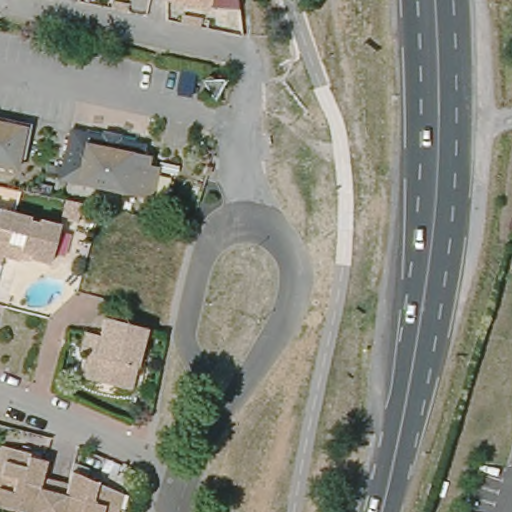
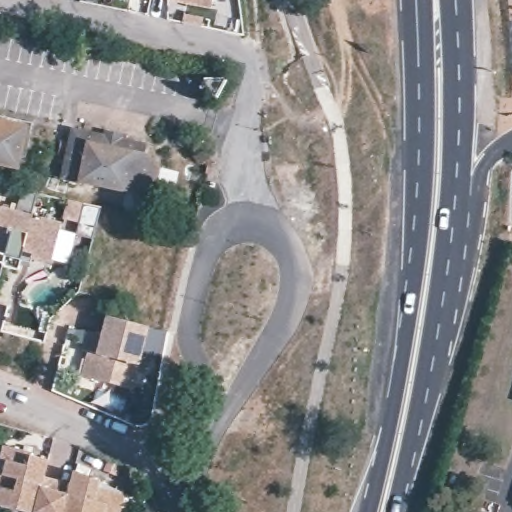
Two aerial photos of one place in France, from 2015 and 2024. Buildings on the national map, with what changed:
unchanged [(182,1),(174,0),(213,0),(211,8),(182,1)]
unchanged [(13,169),(0,166),(0,123),(22,127),(13,169)]
unchanged [(72,134),(105,141),(106,136),(122,140),(121,145),(145,150),(143,159),(151,161),(149,170),(159,172),(152,203),(61,183),(72,134)]
unchanged [(4,264),(0,263),(0,212),(1,208),(17,213),(6,256),(4,264)]
unchanged [(33,217),(32,220),(41,222),(42,219),(61,224),(52,263),(32,258),(33,253),(24,251),(22,260),(6,256),(17,213),(33,217)]
unchanged [(89,348),(83,346),(88,328),(102,331),(107,312),(149,323),(133,386),(87,373),(82,372),(89,348)]
unchanged [(13,448),(34,453),(33,457),(49,461),(45,479),(42,488),(56,491),(50,512),(23,512),(0,506),(0,463),(5,445),(13,448)]
unchanged [(56,491),(68,495),(70,486),(75,471),(121,491),(129,493),(124,510),(124,512),(50,512),(56,491)]

